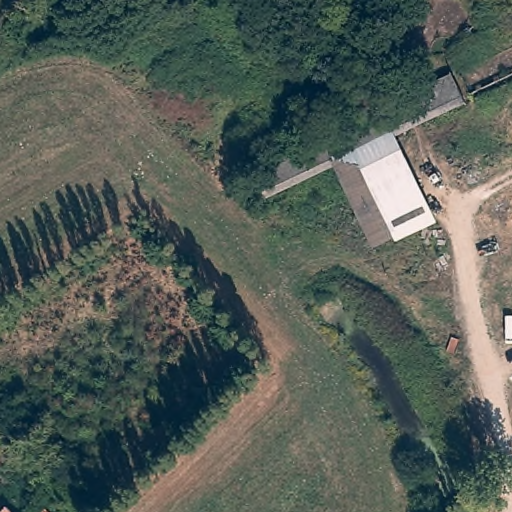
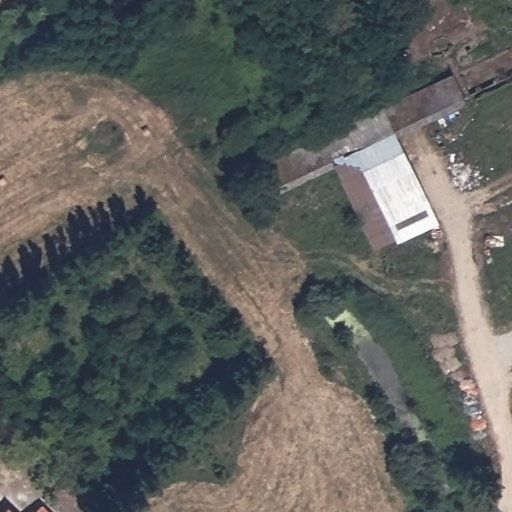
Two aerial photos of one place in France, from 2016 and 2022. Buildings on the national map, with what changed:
unchanged [(446,82),(461,112),(396,146),(338,176),(276,209),(261,179),(446,82)]
unchanged [(348,171),(396,146),(437,226),(375,256),(338,176),(348,171)]

